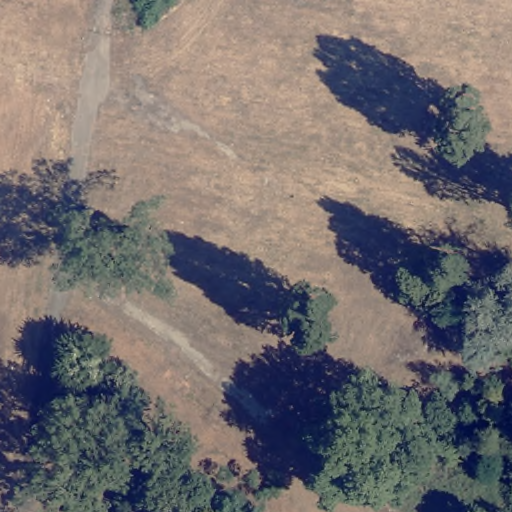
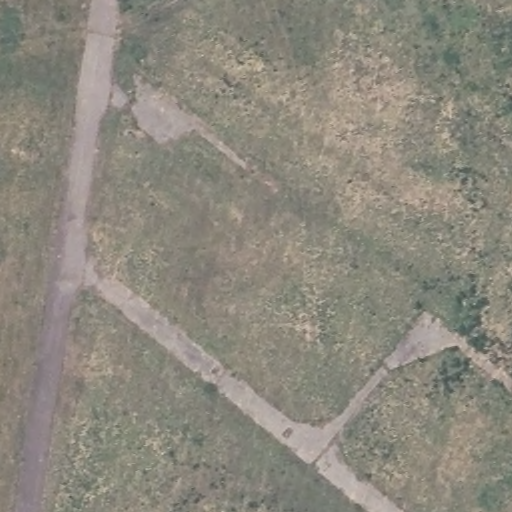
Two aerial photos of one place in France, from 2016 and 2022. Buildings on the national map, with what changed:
[]

